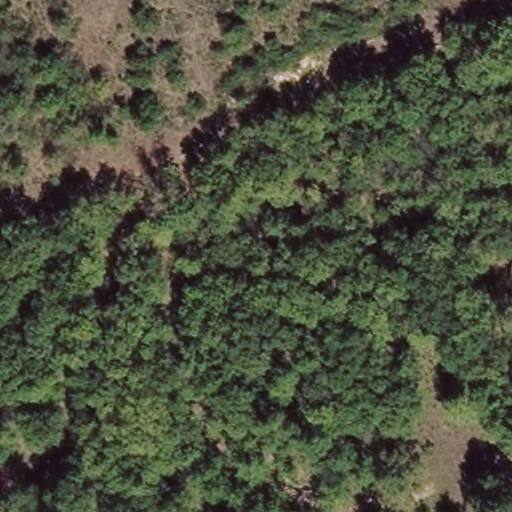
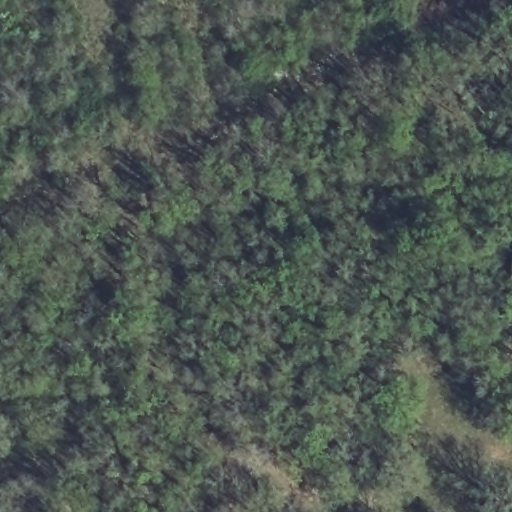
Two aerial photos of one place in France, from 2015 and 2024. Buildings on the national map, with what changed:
unchanged [(510,348),(509,314),(512,315),(512,348),(510,348)]

